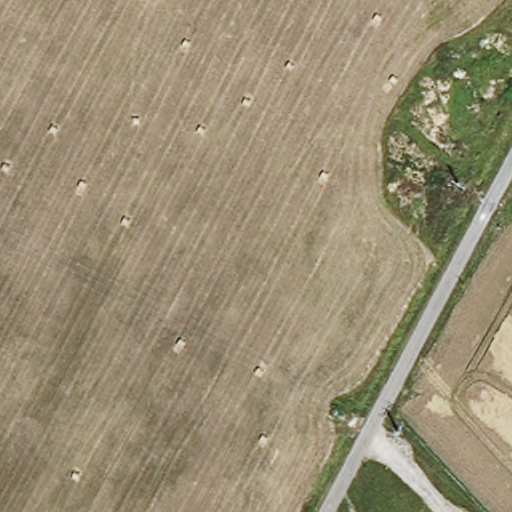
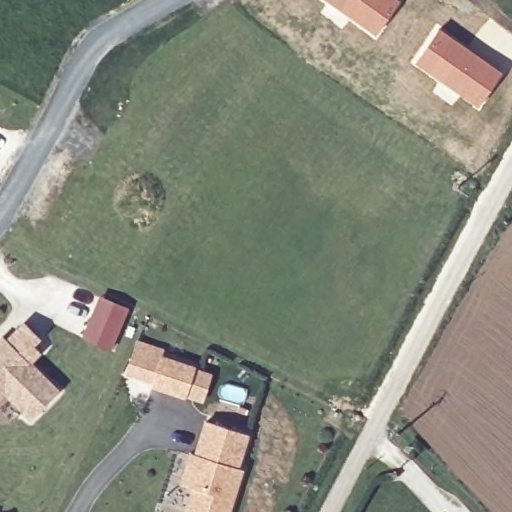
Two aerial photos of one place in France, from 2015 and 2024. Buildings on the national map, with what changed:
new [(374,35),(325,0),(400,0),(374,35)]
new [(438,27),(502,71),(477,107),(413,62),(438,27)]
new [(32,343),(39,350),(27,362),(57,390),(27,420),(12,405),(2,413),(0,411),(0,345),(22,322),(38,337),(32,343)]
new [(196,367),(185,400),(150,390),(160,355),(196,367)]
new [(240,466),(244,467),(230,512),(183,512),(190,489),(180,486),(189,452),(193,454),(203,420),(250,435),(240,466)]

